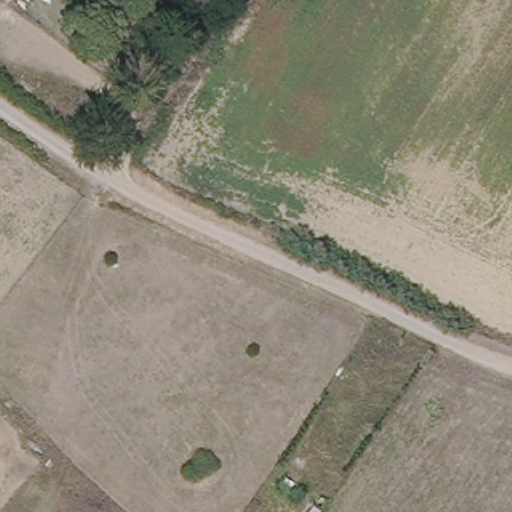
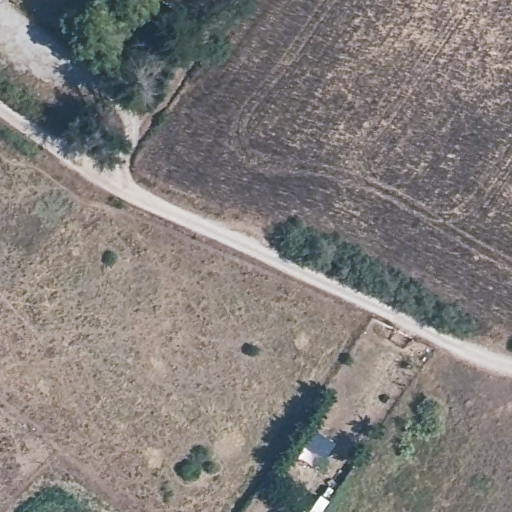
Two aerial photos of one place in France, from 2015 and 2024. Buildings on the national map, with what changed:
[]

